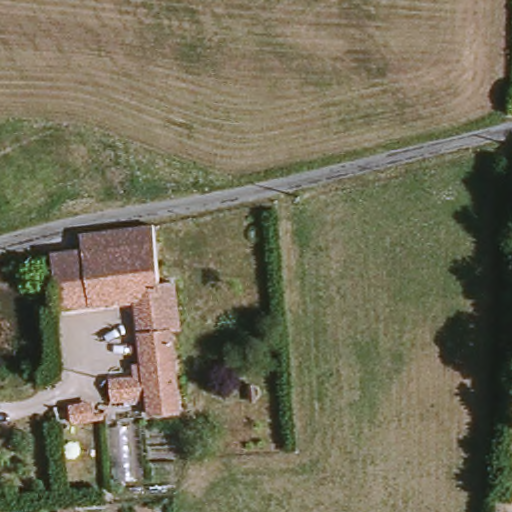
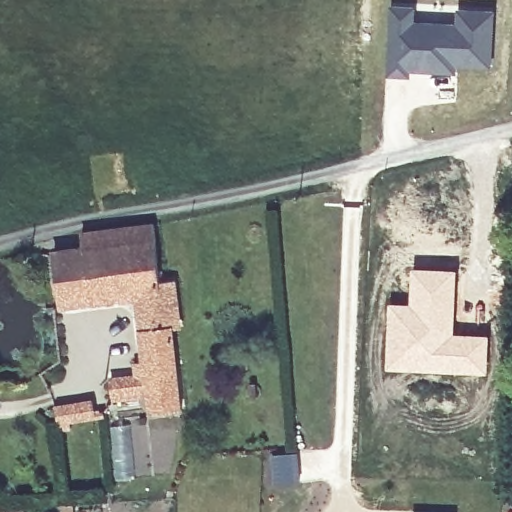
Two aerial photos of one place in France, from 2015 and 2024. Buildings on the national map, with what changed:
new [(388,4),(417,4),(416,19),(455,23),(456,8),(495,9),(491,68),(457,66),(457,75),(411,73),(410,78),(386,77),(388,4)]
unchanged [(182,320),(191,408),(164,411),(162,397),(122,402),(119,381),(157,374),(147,294),(71,300),(64,250),(92,247),(89,227),(164,218),(170,274),(182,274),(186,308),(187,319),(182,320)]
new [(388,303),(409,303),(411,267),(458,268),(456,332),(490,334),(487,374),(384,372),(388,303)]

